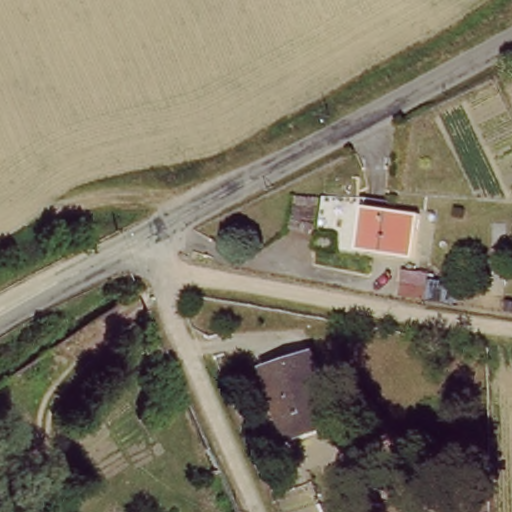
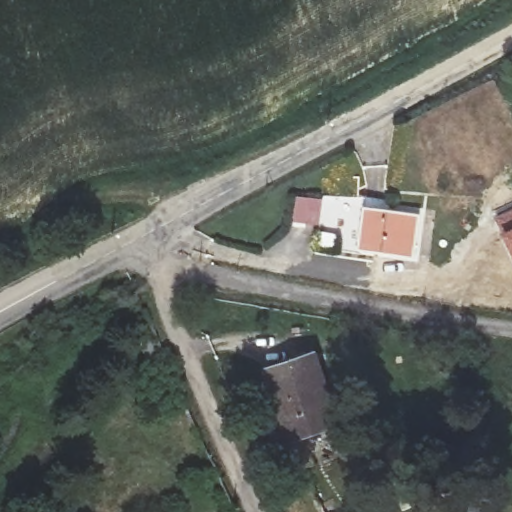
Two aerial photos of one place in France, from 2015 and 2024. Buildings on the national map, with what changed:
new [(512,207),(512,259),(493,216),(512,207)]
unchanged [(410,263),(352,253),(360,209),(417,220),(410,263)]
unchanged [(398,277),(425,281),(421,305),(394,300),(398,277)]
unchanged [(332,423),(286,439),(264,373),(309,357),(332,423)]

